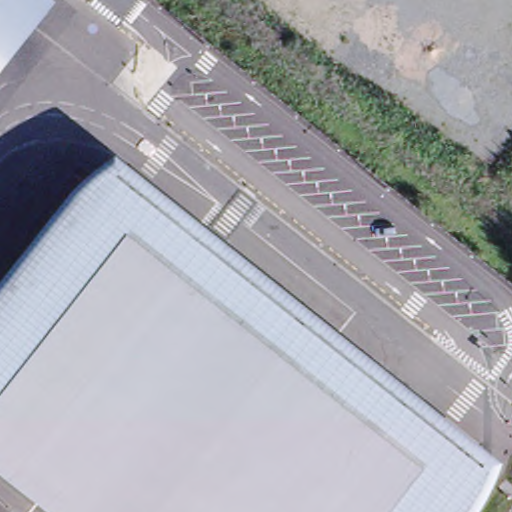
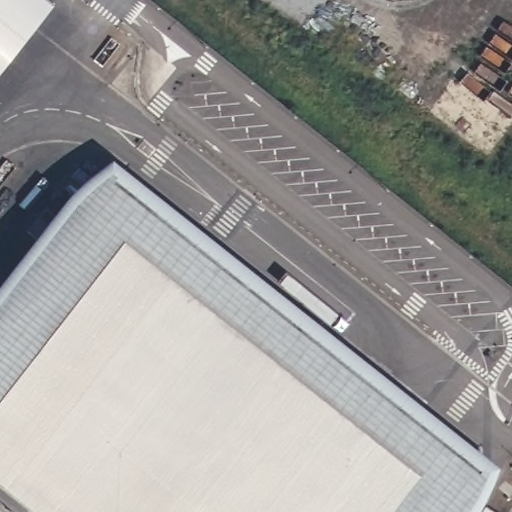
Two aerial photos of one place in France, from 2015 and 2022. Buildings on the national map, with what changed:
unchanged [(0,69),(0,0),(49,0),(53,4),(0,69)]
unchanged [(115,152),(498,464),(481,512),(44,512),(0,479),(0,278),(79,177),(115,152)]

